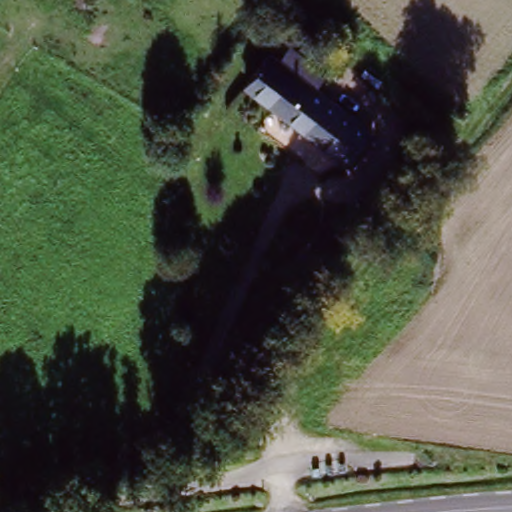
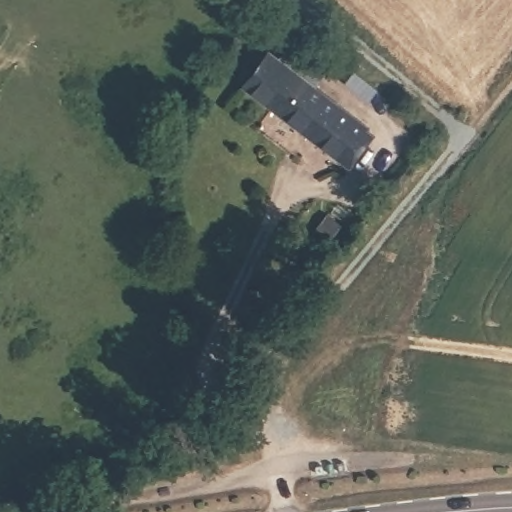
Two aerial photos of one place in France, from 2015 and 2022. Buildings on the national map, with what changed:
unchanged [(263,55),(271,61),(282,47),(320,77),(308,91),(367,139),(342,169),(240,84),(263,55)]

